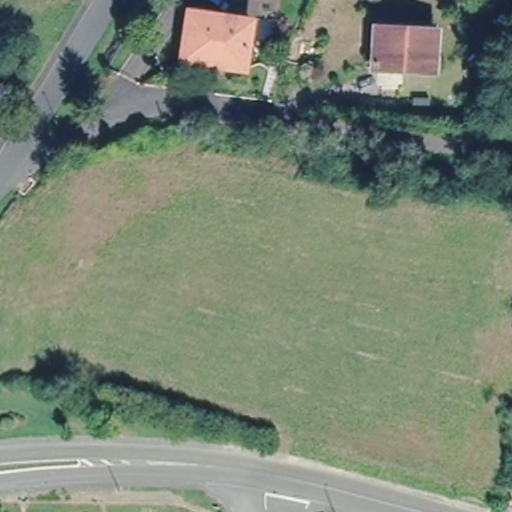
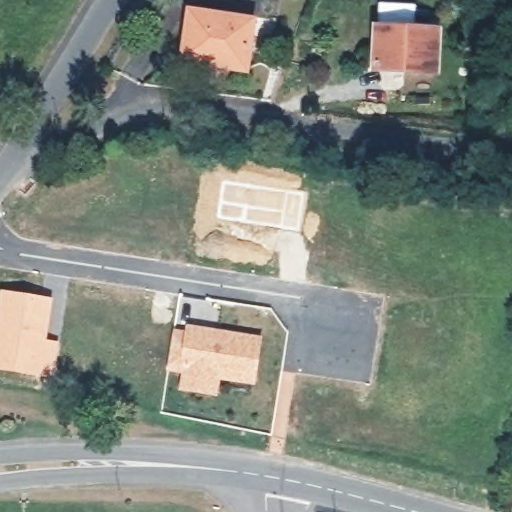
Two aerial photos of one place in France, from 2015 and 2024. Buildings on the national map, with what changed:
unchanged [(247,68),(182,60),(189,7),(254,18),(247,68)]
unchanged [(436,69),(377,66),(377,27),(437,31),(436,69)]
new [(0,289),(53,297),(48,339),(59,341),(54,378),(0,369),(0,289)]
new [(172,327),(185,329),(185,324),(262,335),(256,386),(221,381),(218,397),(178,391),(180,374),(166,371),(172,327)]

